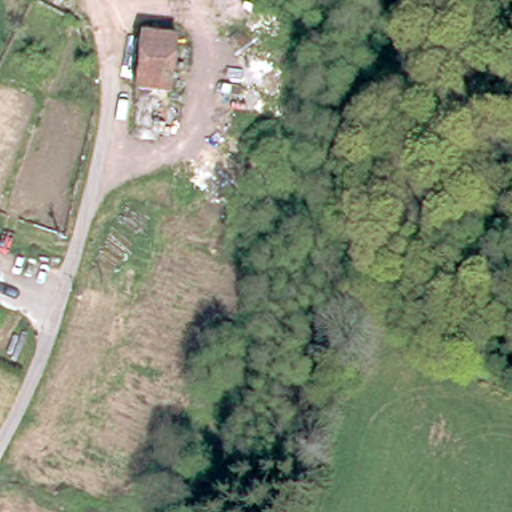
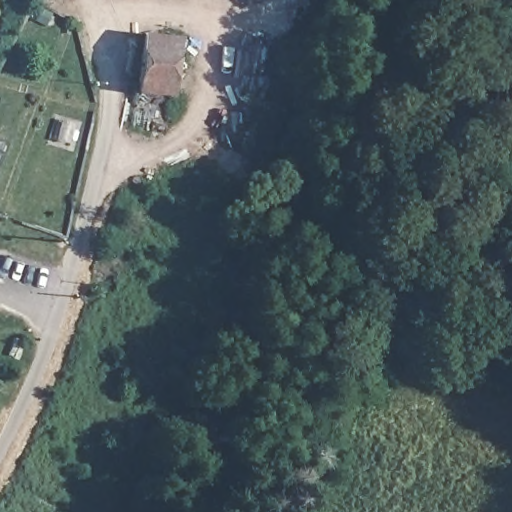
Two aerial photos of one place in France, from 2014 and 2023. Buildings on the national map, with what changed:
unchanged [(184,48),(170,100),(161,99),(137,92),(152,40),(184,48)]

